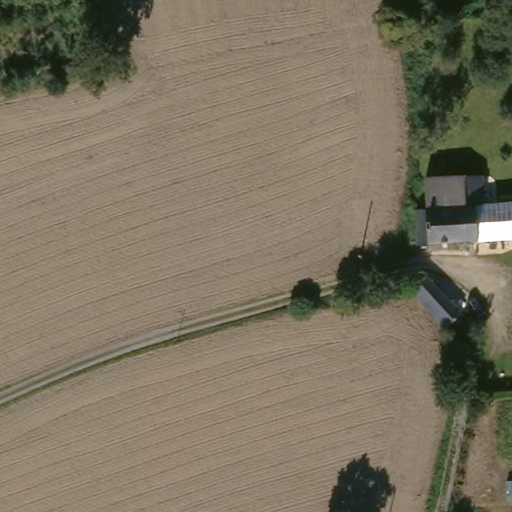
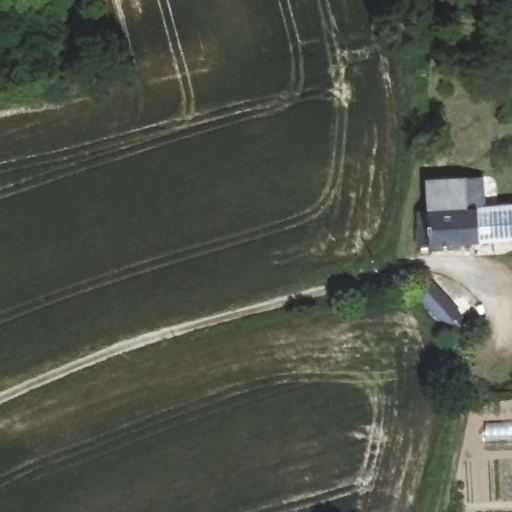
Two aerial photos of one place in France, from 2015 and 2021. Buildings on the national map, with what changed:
unchanged [(421,248),(422,213),(430,213),(429,183),(486,181),(487,211),(512,210),(512,244),(421,248)]
unchanged [(407,292),(421,280),(435,295),(454,317),(452,319),(458,326),(449,333),(443,327),(440,331),(406,293),(407,292)]

